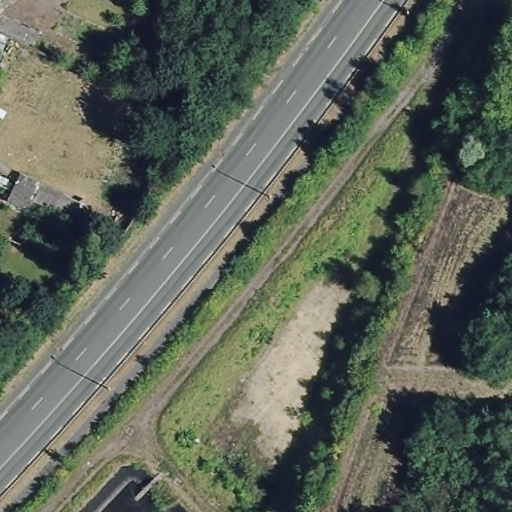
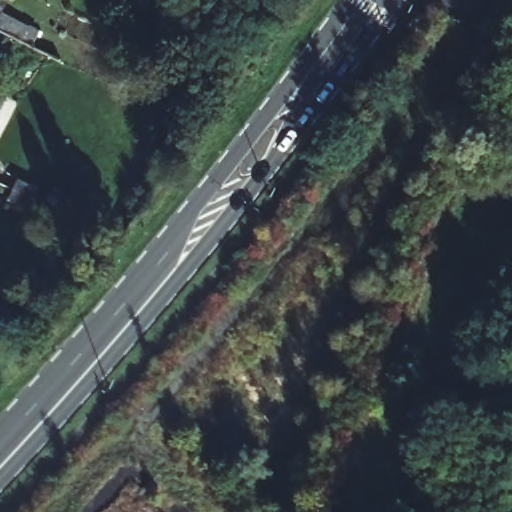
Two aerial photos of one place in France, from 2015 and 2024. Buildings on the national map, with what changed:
unchanged [(132,0),(134,0),(133,1),(132,0)]
unchanged [(12,190),(16,181),(37,192),(32,200),(27,210),(7,199),(12,190)]

